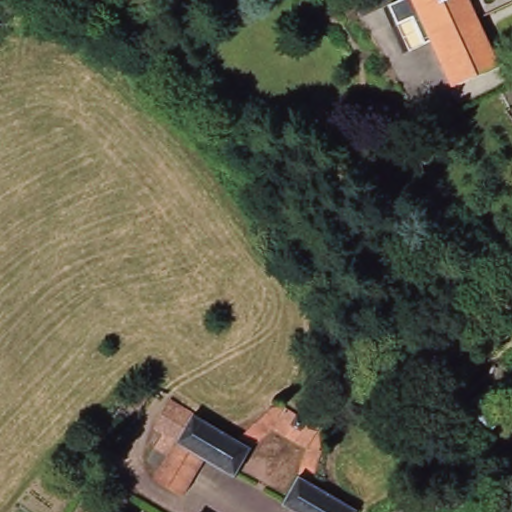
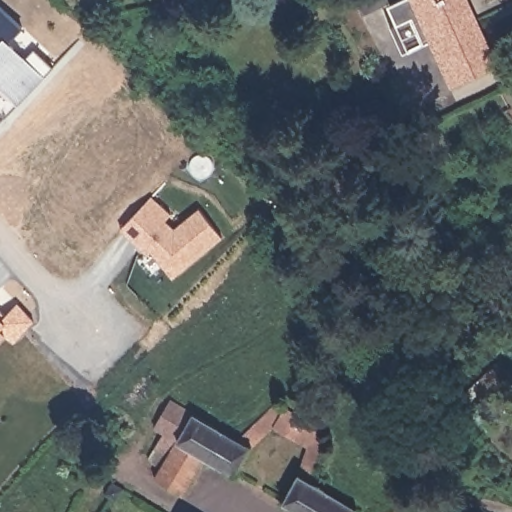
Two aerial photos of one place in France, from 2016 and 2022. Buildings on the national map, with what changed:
unchanged [(397,17),(389,0),(470,0),(498,61),(453,82),(432,35),(409,45),(397,17)]
new [(171,215),(166,220),(173,228),(198,209),(221,239),(172,280),(159,266),(163,260),(153,246),(147,253),(120,230),(151,197),(171,215)]
new [(14,343),(5,335),(0,340),(0,311),(5,315),(17,303),(33,321),(14,343)]
unchanged [(165,431),(155,425),(173,397),(240,438),(272,407),(289,407),(323,427),(324,452),(314,483),(358,510),(357,512),(300,512),(285,503),(302,477),(309,448),(274,427),(253,447),(237,474),(206,455),(180,440),(171,455),(156,446),(165,431)]
unchanged [(180,440),(206,455),(184,495),(157,479),(171,455),(180,440)]
unchanged [(117,493),(124,481),(136,489),(129,500),(121,496),(117,493)]

